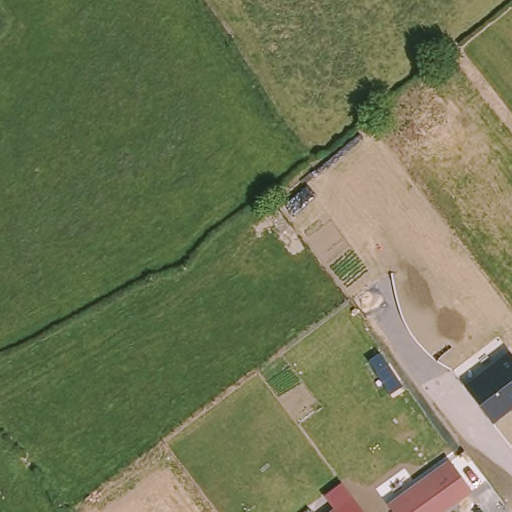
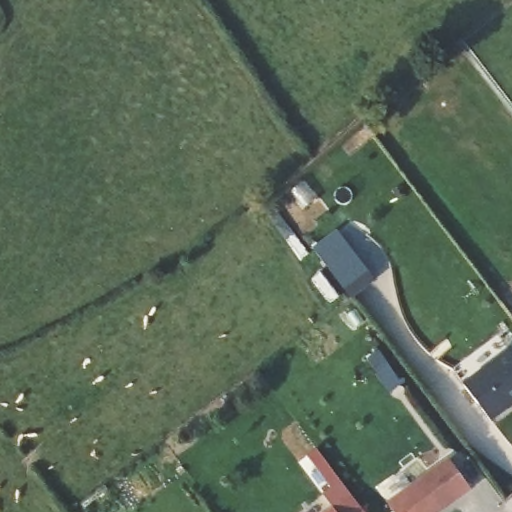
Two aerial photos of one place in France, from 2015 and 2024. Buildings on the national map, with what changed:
new [(351,295),(327,263),(315,247),(337,230),(350,245),(375,277),(351,295)]
unchanged [(512,407),(491,423),(464,385),(508,351),(512,356),(512,407)]
unchanged [(471,491),(442,512),(393,512),(386,503),(449,457),(471,491)]
unchanged [(322,496),(341,481),(364,512),(325,512),(332,507),(322,496)]

